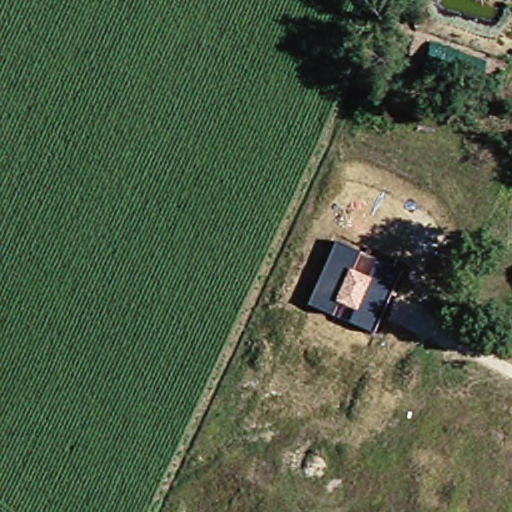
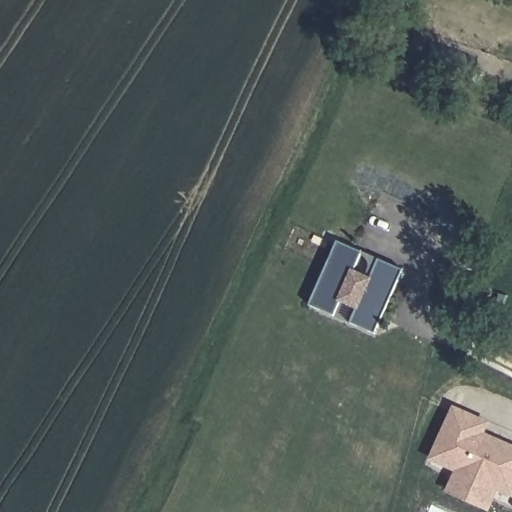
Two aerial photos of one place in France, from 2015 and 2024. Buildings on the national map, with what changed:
unchanged [(376,334),(307,305),(336,242),(402,270),(376,334)]
new [(459,467),(436,457),(457,410),(487,424),(483,434),(501,442),(512,447),(512,490),(511,491),(496,485),(495,490),(487,505),(449,488),(456,473),(459,467)]

